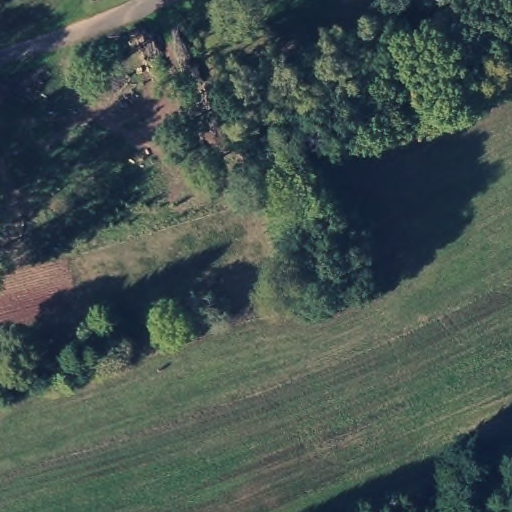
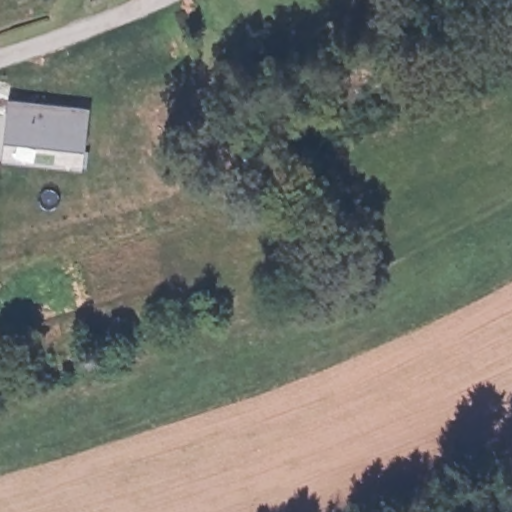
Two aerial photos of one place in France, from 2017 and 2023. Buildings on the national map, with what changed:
new [(3,141),(8,99),(88,108),(85,150),(3,141)]

